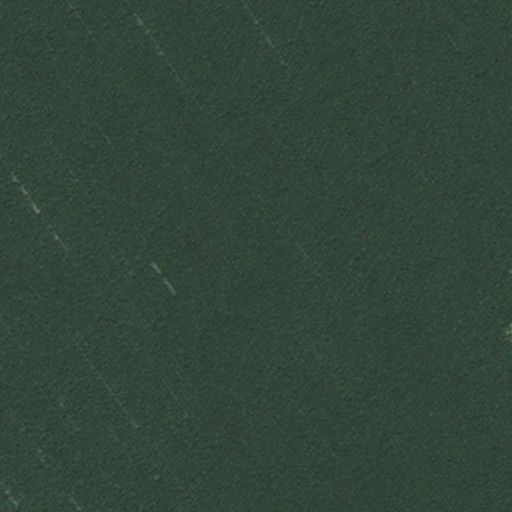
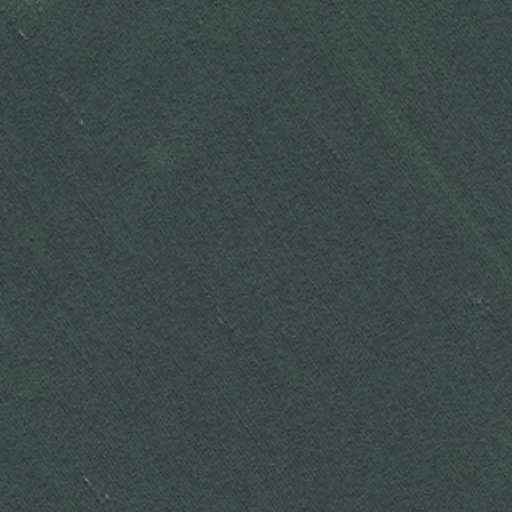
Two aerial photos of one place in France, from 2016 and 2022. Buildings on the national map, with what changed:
[]

